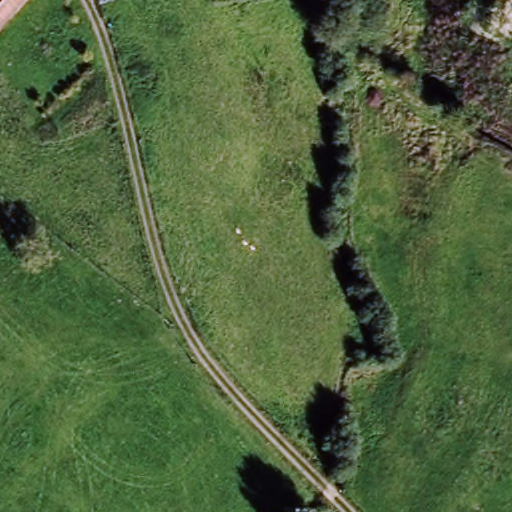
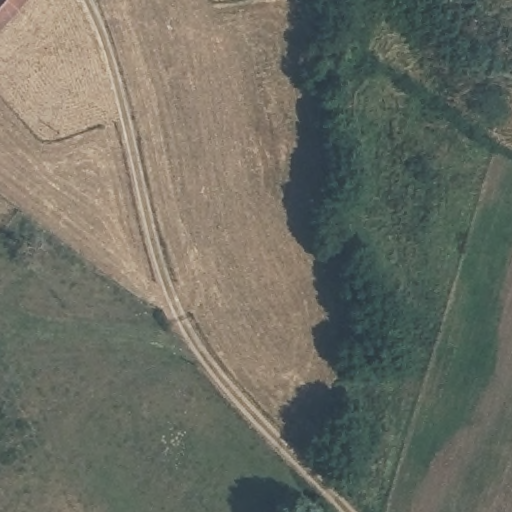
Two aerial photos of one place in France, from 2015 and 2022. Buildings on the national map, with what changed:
unchanged [(0,20),(0,0),(18,0),(0,20)]

